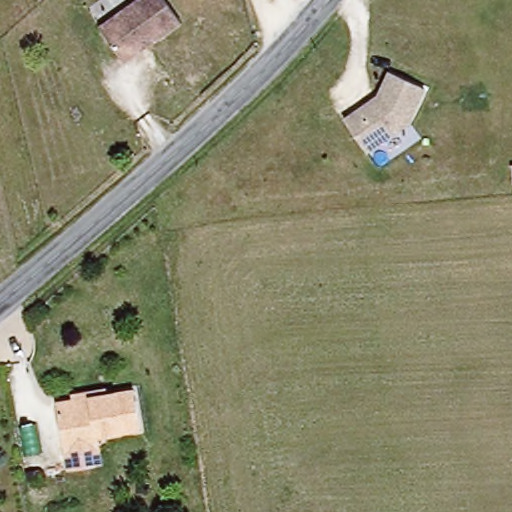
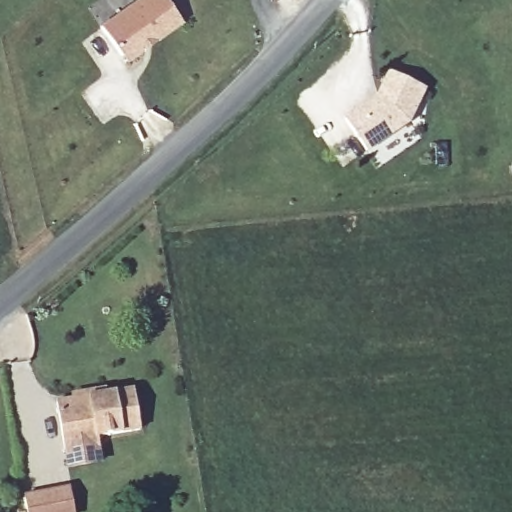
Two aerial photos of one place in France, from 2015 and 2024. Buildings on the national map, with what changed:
unchanged [(118,59),(98,28),(141,0),(163,0),(179,25),(150,45),(123,65),(118,59)]
unchanged [(412,125),(369,155),(349,122),(382,99),(393,73),(428,91),(412,125)]
unchanged [(77,464),(73,450),(64,401),(132,387),(141,429),(102,437),(103,444),(106,458),(77,464)]
new [(76,512),(28,512),(24,494),(71,485),(76,512)]

